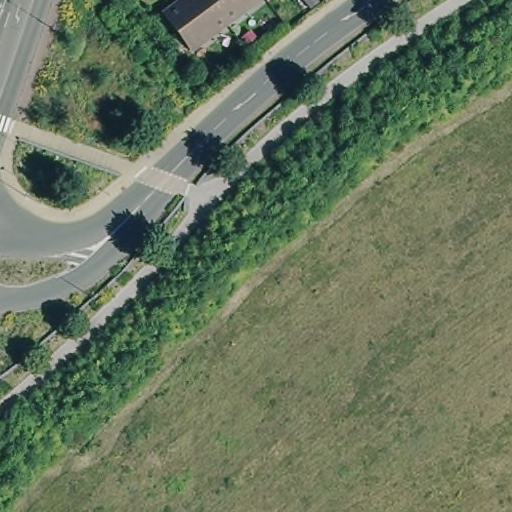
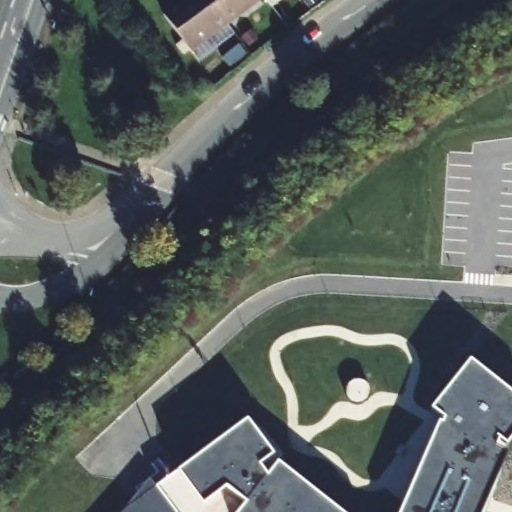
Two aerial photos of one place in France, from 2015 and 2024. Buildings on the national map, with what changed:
unchanged [(228,16),(191,44),(164,7),(174,0),(215,0),(228,16)]
unchanged [(228,16),(215,0),(250,0),(228,16)]
new [(442,424),(444,418),(431,408),(469,360),(512,394),(512,437),(506,445),(498,440),(494,446),(507,453),(482,512),(399,512),(437,422),(442,424)]
new [(258,465),(266,477),(276,462),(341,512),(122,512),(148,480),(154,488),(177,470),(246,421),(273,455),(258,465)]

